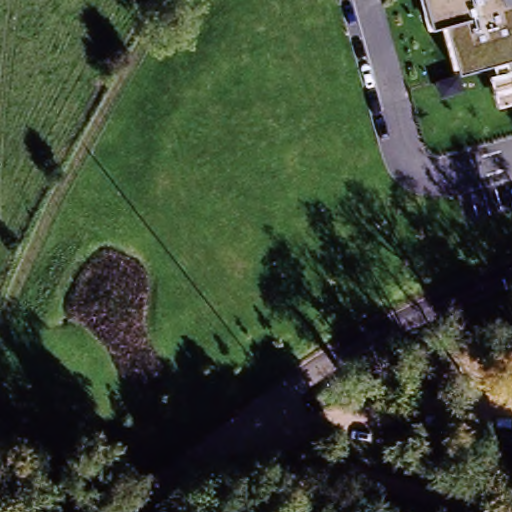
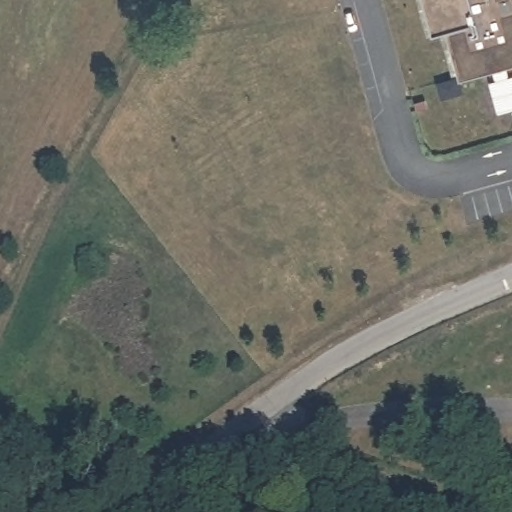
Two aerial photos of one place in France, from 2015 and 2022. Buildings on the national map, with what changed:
unchanged [(498,109),(487,70),(461,78),(448,29),(432,33),(422,0),(512,0),(512,64),(512,106),(498,109)]

